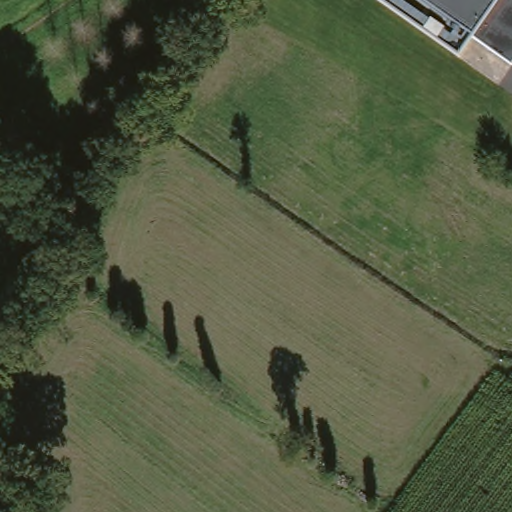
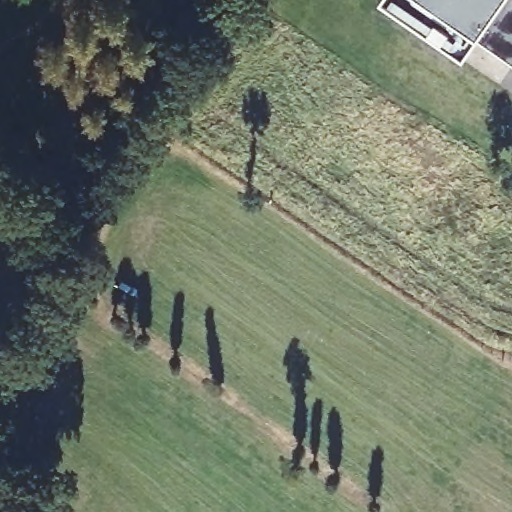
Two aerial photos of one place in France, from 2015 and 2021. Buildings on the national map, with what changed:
unchanged [(466,54),(392,0),(512,0),(512,57),(482,33),(466,54)]

